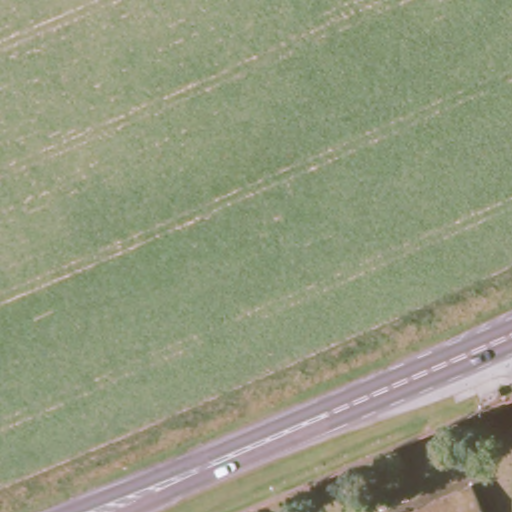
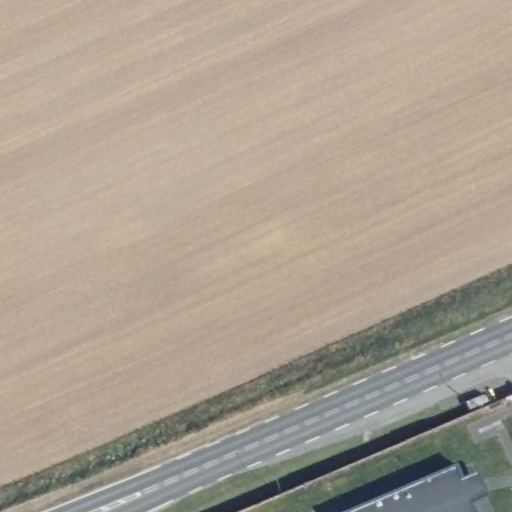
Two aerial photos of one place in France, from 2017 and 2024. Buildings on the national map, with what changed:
new [(476,512),(348,512),(457,465),(476,512)]
new [(489,497),(473,504),(463,480),(479,473),(489,497)]
demolished [(488,512),(412,512),(476,484),(488,512)]

